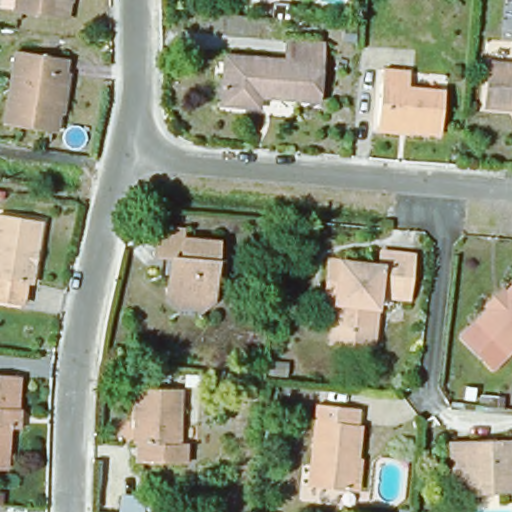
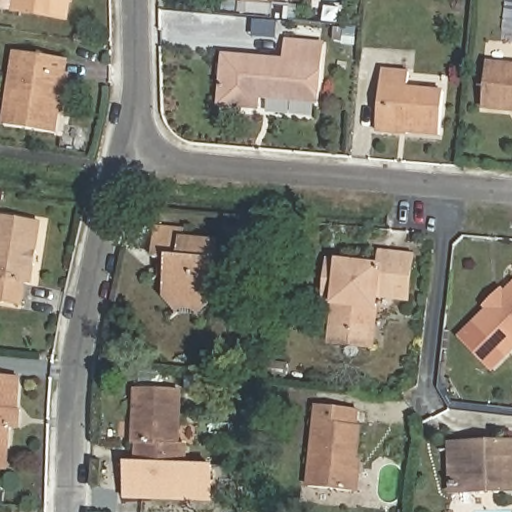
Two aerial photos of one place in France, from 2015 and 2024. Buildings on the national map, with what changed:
unchanged [(21,9),(5,6),(6,0),(71,0),(69,16),(21,9)]
unchanged [(250,0),(271,0),(271,1),(250,0)]
unchanged [(222,53),(284,58),(285,39),(319,41),(314,99),(257,94),(255,106),(219,103),(222,53)]
unchanged [(3,128),(14,52),(66,60),(54,135),(3,128)]
unchanged [(486,66),(512,68),(512,110),(483,108),(486,66)]
unchanged [(378,128),(382,72),(409,75),(408,91),(443,95),(439,141),(406,139),(377,136),(378,128)]
unchanged [(27,284),(23,285),(19,307),(0,304),(0,219),(37,225),(27,284)]
unchanged [(178,312),(169,298),(172,259),(157,257),(159,230),(182,232),(182,240),(219,244),(214,301),(199,314),(178,312)]
unchanged [(334,342),(335,330),(339,292),(328,290),(330,263),(379,269),(381,252),(413,256),(409,298),(379,295),(374,335),(373,347),(334,342)]
unchanged [(512,287),(512,355),(492,375),(459,340),(512,287)]
unchanged [(13,412),(8,413),(5,445),(3,469),(0,468),(0,379),(15,380),(13,412)]
unchanged [(133,390),(178,391),(176,446),(184,446),(184,466),(130,464),(133,390)]
unchanged [(318,407),(358,411),(357,430),(359,431),(354,492),(310,488),(318,407)]
unchanged [(448,493),(447,454),(447,446),(484,445),(512,444),(512,492),(448,493)]
new [(214,466),(214,502),(124,499),(125,464),(130,464),(184,466),(184,464),(214,466)]

